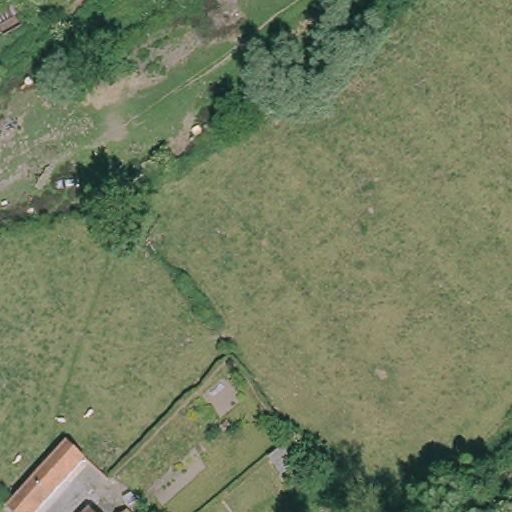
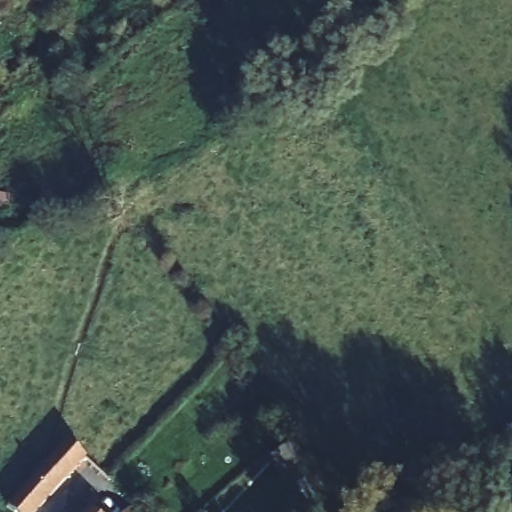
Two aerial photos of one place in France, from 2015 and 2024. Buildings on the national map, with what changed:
unchanged [(286,466),(273,451),(293,438),(304,452),(286,466)]
unchanged [(66,442),(85,456),(65,475),(68,478),(37,512),(18,512),(9,506),(16,499),(66,442)]
unchanged [(94,506),(100,512),(88,512),(94,506)]

